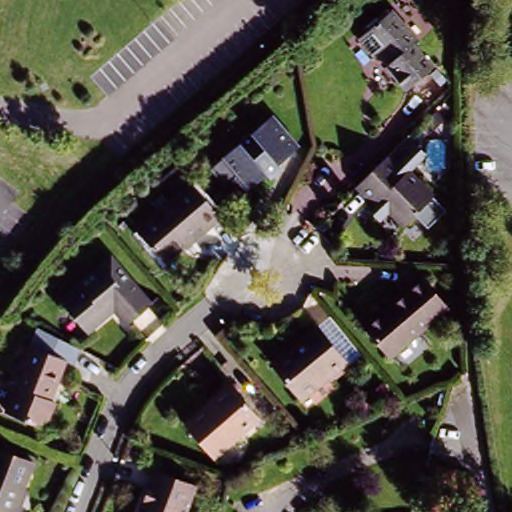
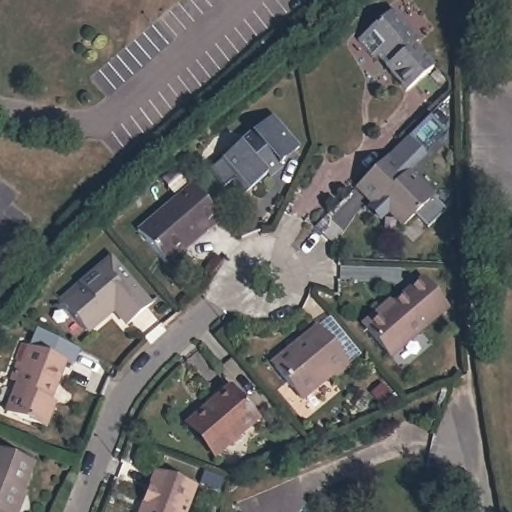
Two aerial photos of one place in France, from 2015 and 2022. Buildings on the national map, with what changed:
unchanged [(387,15),(414,46),(409,51),(431,75),(403,100),(381,76),(387,71),(376,61),(370,67),(351,47),(387,15)]
unchanged [(210,169),(223,156),(271,113),(299,144),(241,194),(231,182),(226,186),(210,169)]
unchanged [(434,230),(421,216),(409,227),(398,214),(389,221),(378,209),(381,205),(363,185),(394,155),(410,140),(411,140),(423,153),(423,157),(411,168),(439,198),(453,211),(434,230)]
unchanged [(206,207),(219,222),(204,235),(201,232),(164,265),(136,231),(188,187),(206,207)]
unchanged [(86,288),(83,285),(111,261),(148,306),(125,325),(112,308),(84,330),(64,306),(86,288)]
unchanged [(377,310),(381,316),(422,282),(447,312),(388,360),(359,325),(377,310)]
unchanged [(280,352),(284,356),(313,331),(341,366),(324,380),(321,376),(292,400),(263,365),(280,352)]
unchanged [(23,385),(13,381),(20,362),(29,365),(34,348),(67,360),(49,410),(57,411),(49,430),(11,415),(23,385)]
unchanged [(221,396),(250,430),(211,462),(182,428),(221,396)]
unchanged [(16,512),(0,512),(0,455),(33,466),(16,512)]
unchanged [(186,495),(179,512),(137,512),(148,481),(186,495)]

